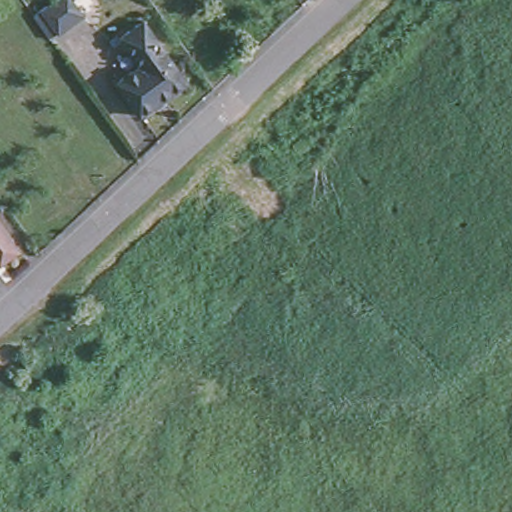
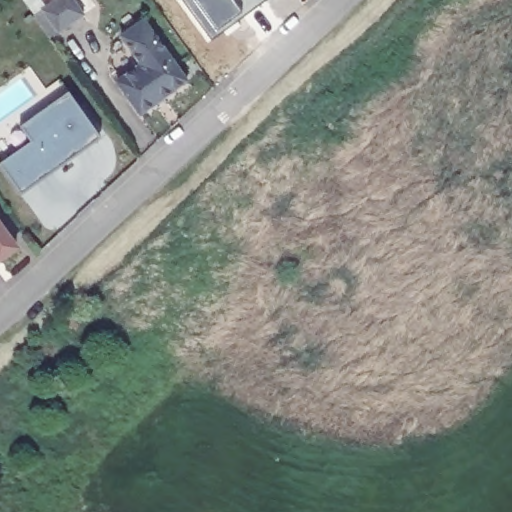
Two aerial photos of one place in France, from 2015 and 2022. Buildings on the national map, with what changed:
unchanged [(78,13),(55,28),(40,6),(49,0),(70,0),(78,13)]
unchanged [(146,66),(125,38),(148,21),(192,81),(146,114),(123,83),(146,66)]
new [(18,125),(67,90),(99,136),(20,195),(0,167),(0,161),(29,142),(18,125)]
unchanged [(0,227),(16,249),(0,262),(0,227)]

